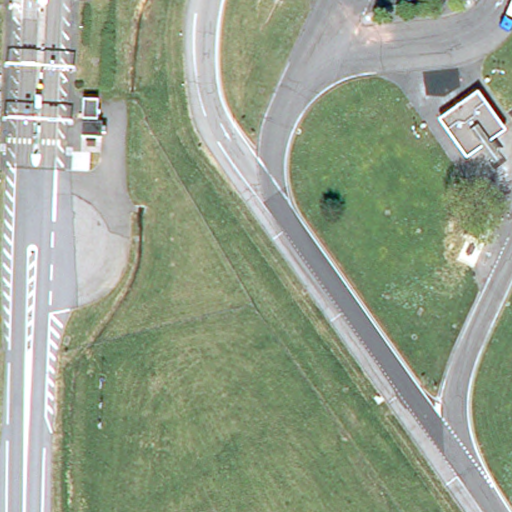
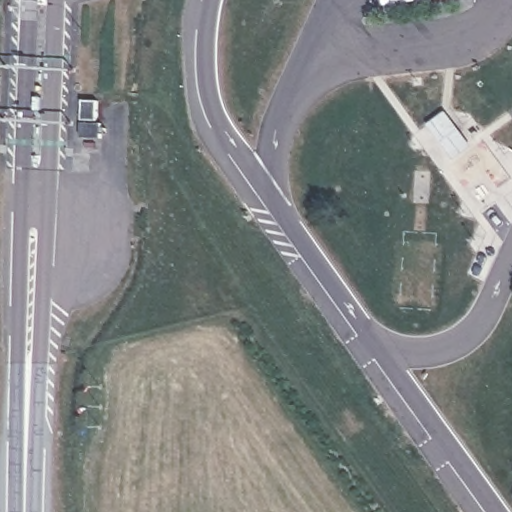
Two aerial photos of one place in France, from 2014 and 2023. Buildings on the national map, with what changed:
demolished [(468,161),(438,117),(481,88),(511,132),(468,161)]
unchanged [(42,97),(41,110),(35,110),(35,97),(42,97)]
unchanged [(98,101),(98,121),(82,120),(83,100),(98,101)]
unchanged [(82,124),(103,125),(106,125),(106,135),(101,140),(81,139),(82,124)]

